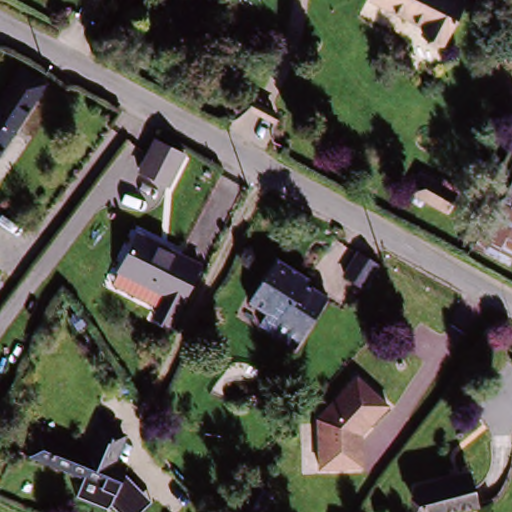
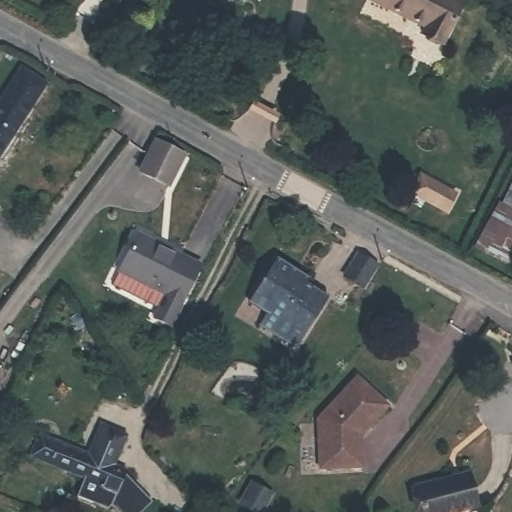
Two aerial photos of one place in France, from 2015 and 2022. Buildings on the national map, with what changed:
unchanged [(377,1),(377,0),(472,0),(452,43),(431,33),(434,26),(377,1)]
unchanged [(26,70),(52,87),(0,161),(0,110),(26,70)]
unchanged [(153,147),(183,162),(170,191),(139,176),(153,147)]
unchanged [(498,202),(509,208),(512,201),(512,247),(482,230),(498,202)]
unchanged [(163,316),(172,297),(126,276),(145,234),(207,263),(180,323),(163,316)]
unchanged [(363,247),(386,259),(375,280),(352,267),(363,247)]
unchanged [(329,294),(304,346),(269,329),(275,317),(252,306),(275,258),(309,275),(306,282),(329,294)]
unchanged [(318,469),(323,421),(364,379),(390,406),(362,433),(359,466),(318,469)]
unchanged [(101,512),(85,505),(96,483),(33,456),(35,452),(21,446),(29,428),(91,456),(103,429),(126,439),(114,466),(108,479),(123,486),(111,512),(101,512)]
unchanged [(465,476),(470,511),(466,512),(418,512),(414,482),(465,476)]
unchanged [(221,500),(233,480),(252,492),(241,512),(221,500)]

